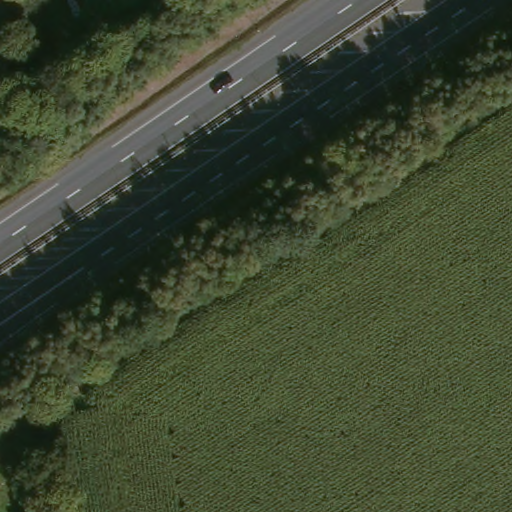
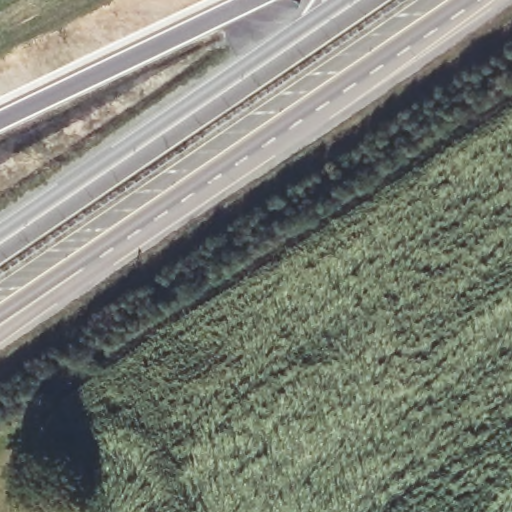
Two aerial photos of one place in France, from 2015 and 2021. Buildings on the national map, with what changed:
[]

